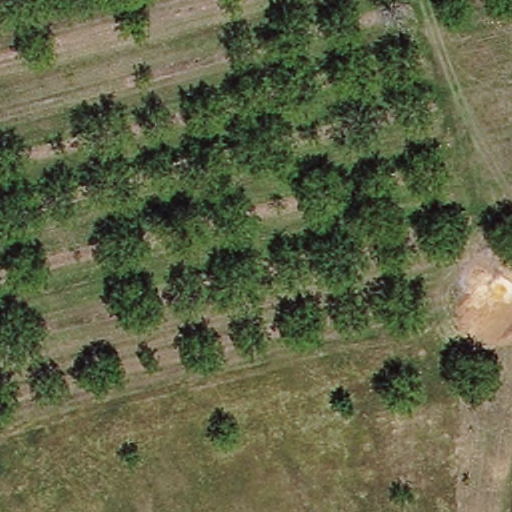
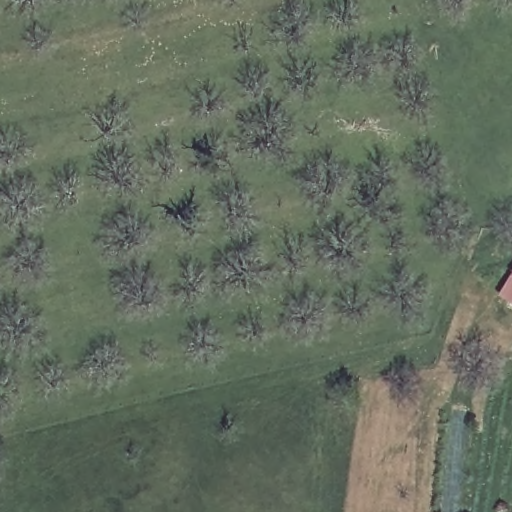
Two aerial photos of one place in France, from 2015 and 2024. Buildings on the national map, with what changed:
new [(512,268),(512,308),(496,299),(512,268)]

